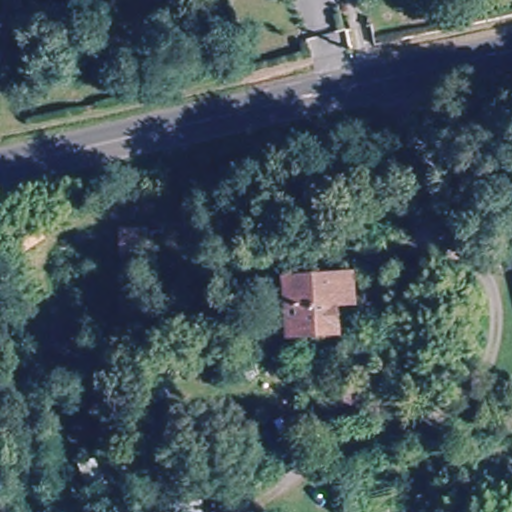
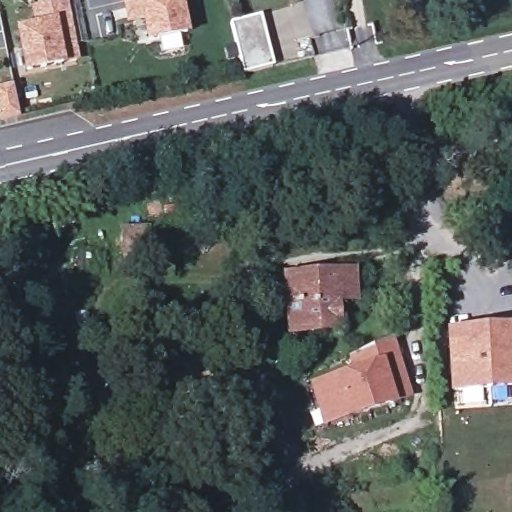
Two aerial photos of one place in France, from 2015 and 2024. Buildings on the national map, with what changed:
new [(75,59),(61,62),(62,69),(25,76),(16,27),(35,23),(31,6),(65,0),(75,59)]
new [(187,39),(146,48),(142,17),(125,21),(122,0),(180,0),(187,39)]
new [(271,65),(244,73),(229,25),(260,17),(271,65)]
unchanged [(198,253),(134,259),(132,229),(196,224),(198,253)]
unchanged [(352,269),(355,305),(340,310),(341,337),(286,344),(281,274),(352,269)]
new [(512,388),(447,393),(444,330),(512,325),(512,388)]
new [(400,354),(405,384),(380,389),(385,411),(356,417),(358,423),(343,426),(338,398),(311,404),(305,375),(400,354)]

